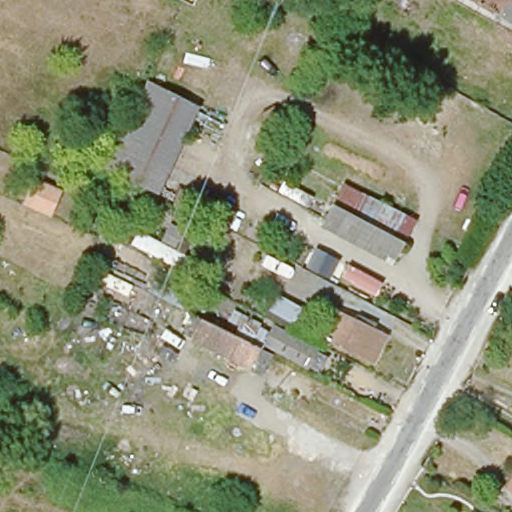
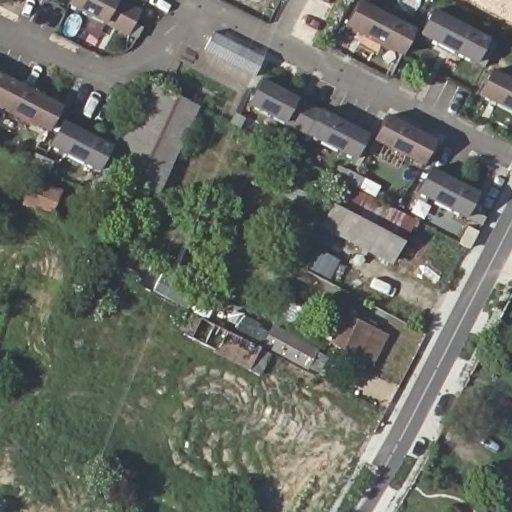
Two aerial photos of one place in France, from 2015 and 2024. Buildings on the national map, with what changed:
new [(105,25),(69,7),(72,0),(124,0),(143,10),(130,37),(105,25)]
demolished [(187,0),(193,0),(191,3),(187,0)]
new [(402,56),(345,27),(359,0),(415,29),(402,56)]
demolished [(423,32),(367,0),(431,0),(439,5),(423,32)]
unchanged [(475,0),(512,0),(512,20),(475,0)]
new [(476,64),(420,35),(434,8),(490,37),(476,64)]
demolished [(486,92),(455,75),(476,37),(478,32),(504,47),(501,51),(490,72),(495,76),(486,92)]
new [(216,34),(267,60),(257,79),(206,52),(216,34)]
new [(479,97),(492,69),(512,79),(512,113),(479,97)]
new [(0,107),(0,73),(62,105),(50,132),(0,107)]
unchanged [(204,99),(166,182),(112,157),(150,75),(204,99)]
new [(355,161),(247,105),(261,79),(369,134),(355,161)]
new [(422,167),(372,141),(386,115),(436,141),(422,167)]
new [(100,172),(50,147),(64,120),(114,145),(100,172)]
new [(467,218),(418,194),(431,167),(480,192),(467,218)]
unchanged [(74,186),(65,207),(35,192),(44,172),(74,186)]
unchanged [(335,192),(406,229),(395,251),(325,214),(335,192)]
unchanged [(137,249),(152,217),(186,232),(179,248),(191,254),(184,272),(137,249)]
unchanged [(302,308),(295,325),(266,313),(273,296),(302,308)]
unchanged [(372,360),(324,337),(337,311),(385,332),(372,360)]
unchanged [(237,313),(257,323),(250,338),(257,341),(247,362),(186,333),(197,312),(230,328),(237,313)]
unchanged [(270,323),(313,343),(305,357),(262,337),(270,323)]
unchanged [(505,491),(512,477),(512,494),(505,491)]

